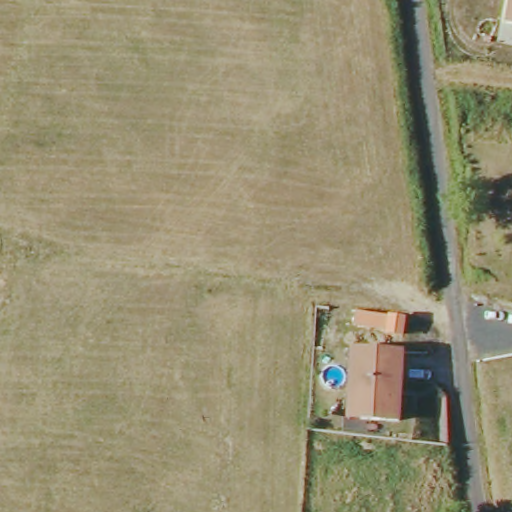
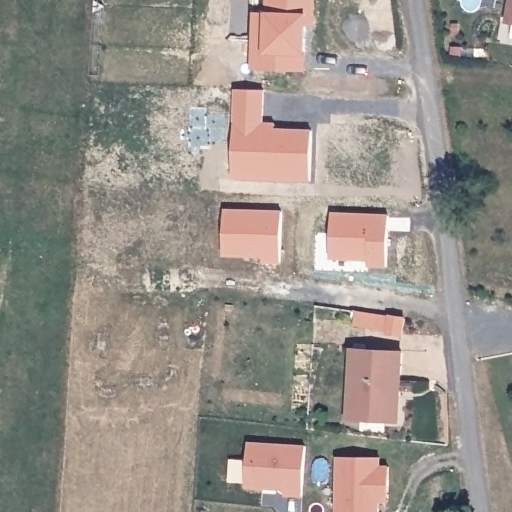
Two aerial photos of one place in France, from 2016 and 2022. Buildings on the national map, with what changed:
new [(257,12),(269,12),(269,0),(316,0),(315,15),(315,25),(308,25),(306,71),(255,70),(256,29),(257,12)]
new [(504,22),(508,0),(512,0),(512,24),(504,22)]
new [(253,165),(253,160),(237,160),(239,89),(266,90),(265,124),(277,125),(278,130),(314,131),(313,180),(253,179),(236,178),(237,165),(253,165)]
new [(367,265),(367,259),(330,258),(332,214),(386,216),(385,265),(367,265)]
new [(229,215),(284,215),(283,263),(266,263),(266,258),(229,257),(229,215)]
unchanged [(403,315),(402,330),(386,328),(387,313),(403,315)]
unchanged [(403,426),(349,423),(352,350),(406,352),(403,426)]
new [(286,496),(286,490),(246,486),(250,441),(306,445),(303,497),(286,496)]
new [(381,456),(382,465),(390,465),(390,502),(380,502),(380,512),(336,512),(337,456),(381,456)]

